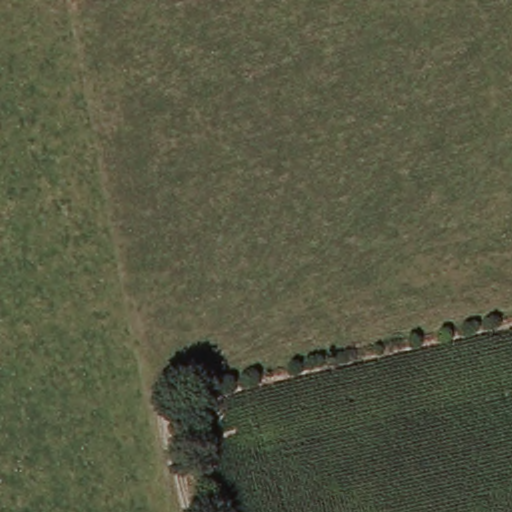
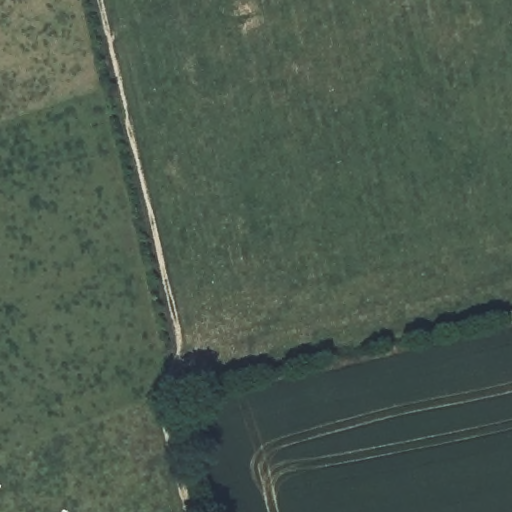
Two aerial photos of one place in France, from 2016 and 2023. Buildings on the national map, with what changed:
[]

